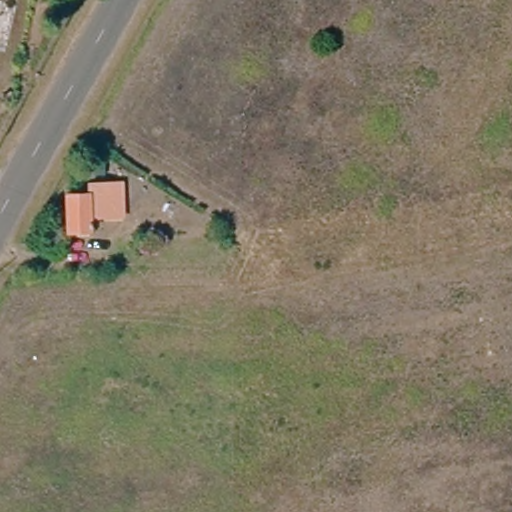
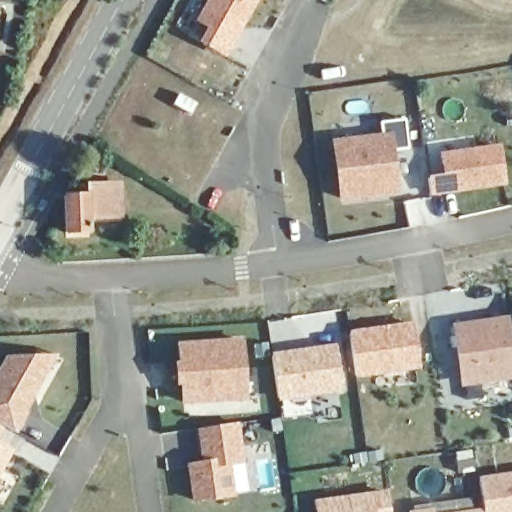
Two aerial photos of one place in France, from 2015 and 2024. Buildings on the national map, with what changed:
new [(226,59),(198,44),(207,27),(194,22),(207,0),(259,0),(226,59)]
new [(181,95),(199,105),(193,115),(175,106),(181,95)]
new [(383,139),(382,124),(406,121),(409,151),(393,153),(397,194),(340,200),(335,144),(383,139)]
new [(444,174),(439,151),(501,142),(507,185),(432,196),(428,175),(444,174)]
unchanged [(85,192),(84,184),(122,181),(123,218),(94,221),(94,231),(85,230),(86,236),(71,237),(69,233),(69,194),(85,192)]
new [(512,341),(512,379),(462,386),(452,324),(509,315),(512,341)]
new [(421,368),(357,378),(349,331),(415,320),(421,368)]
new [(244,337),(249,400),(183,405),(182,385),(177,385),(175,361),(179,361),(177,342),(244,337)]
new [(337,347),(343,389),(279,398),(273,356),(337,347)]
new [(18,434),(7,428),(1,439),(15,447),(0,474),(0,365),(5,355),(57,355),(18,434)]
new [(206,466),(202,431),(238,425),(243,464),(229,466),(234,497),(196,503),(191,468),(206,466)]
new [(479,476),(512,471),(512,512),(454,512),(484,508),(479,476)]
new [(390,512),(319,512),(318,503),(387,493),(390,512)]
new [(434,512),(408,512),(408,511),(433,507),(434,512)]

